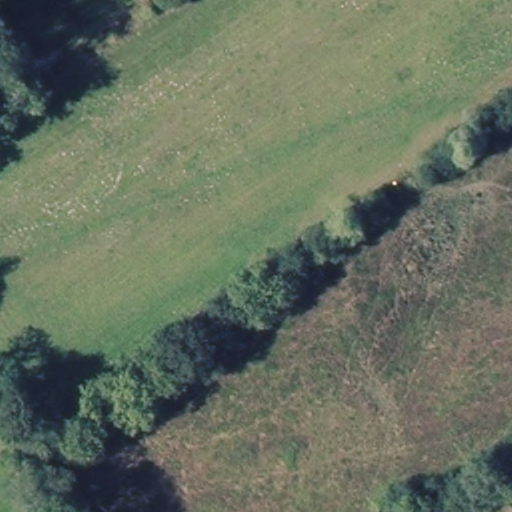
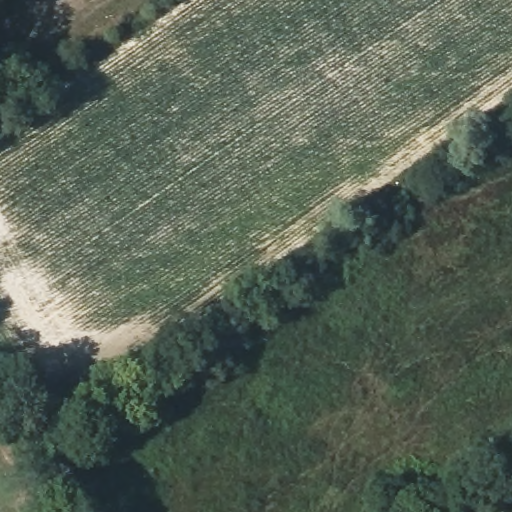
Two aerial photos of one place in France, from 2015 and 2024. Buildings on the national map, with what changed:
[]

